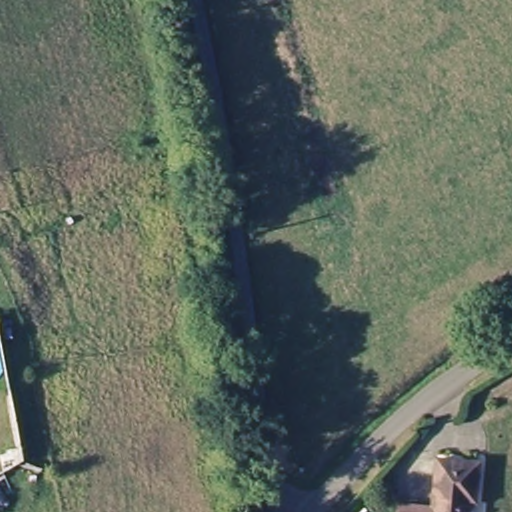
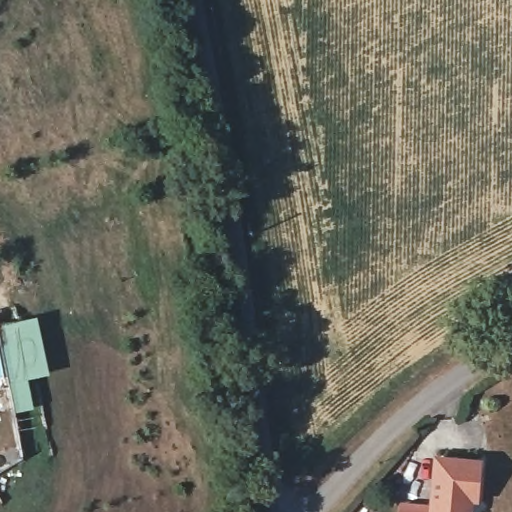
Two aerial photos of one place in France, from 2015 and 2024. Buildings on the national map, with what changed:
new [(51,376),(30,380),(35,411),(15,415),(0,341),(0,325),(39,317),(51,376)]
unchanged [(402,506),(435,507),(440,459),(481,462),(477,501),(469,500),(468,512),(401,512),(402,506)]

